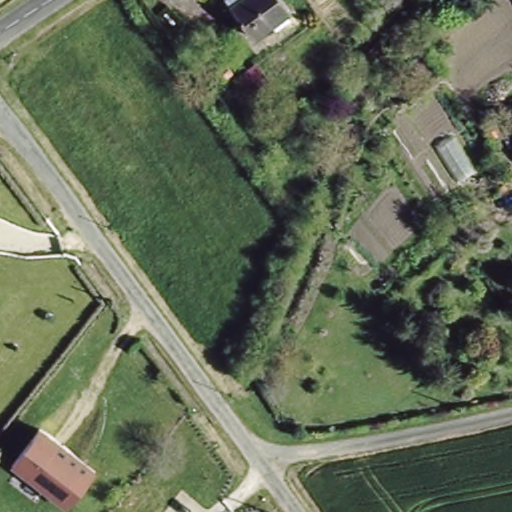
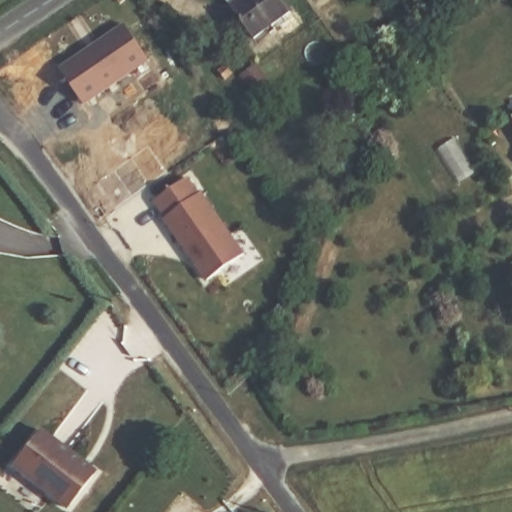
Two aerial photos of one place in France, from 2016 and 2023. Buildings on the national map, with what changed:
unchanged [(226,10),(240,0),(274,0),(286,17),(249,43),(226,10)]
new [(84,104),(59,67),(124,24),(151,60),(84,104)]
unchanged [(232,73),(226,79),(219,71),(226,65),(232,73)]
unchanged [(254,94),(243,78),(259,67),(271,84),(254,94)]
new [(188,179),(199,195),(201,194),(244,255),(208,280),(164,219),(166,217),(155,201),(188,179)]
unchanged [(96,470),(64,508),(9,464),(41,427),(96,470)]

